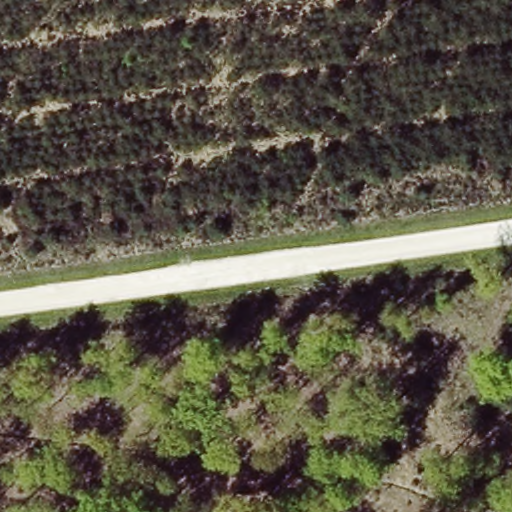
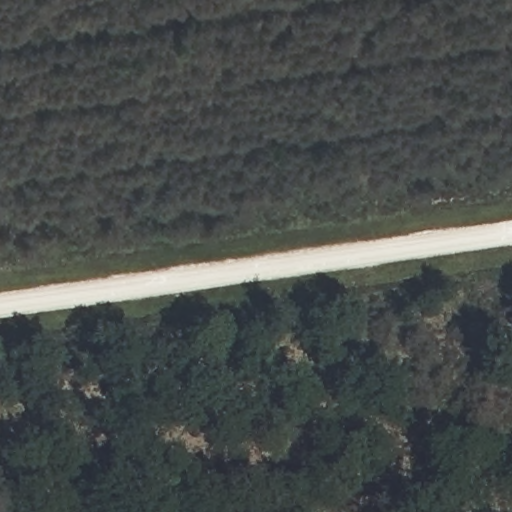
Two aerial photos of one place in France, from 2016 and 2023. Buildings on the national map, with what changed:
[]

